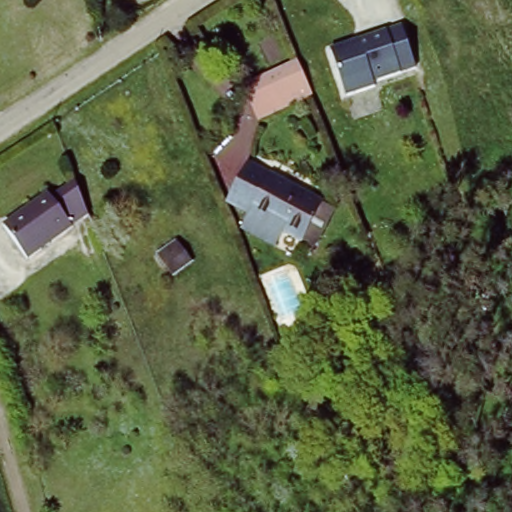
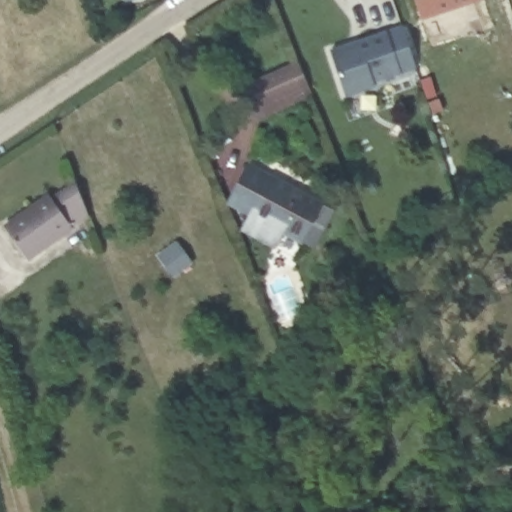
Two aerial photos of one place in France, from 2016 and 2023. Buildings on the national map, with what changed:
new [(422,20),(416,0),(483,0),(422,20)]
unchanged [(410,70),(368,84),(370,90),(341,100),(325,54),(395,28),(410,70)]
unchanged [(313,92),(260,117),(246,87),(301,62),(313,92)]
unchanged [(327,207),(307,248),(287,238),(280,252),(246,235),(254,219),(234,208),(253,170),(327,207)]
unchanged [(94,216),(29,261),(6,227),(52,196),(56,202),(82,184),(94,216)]

